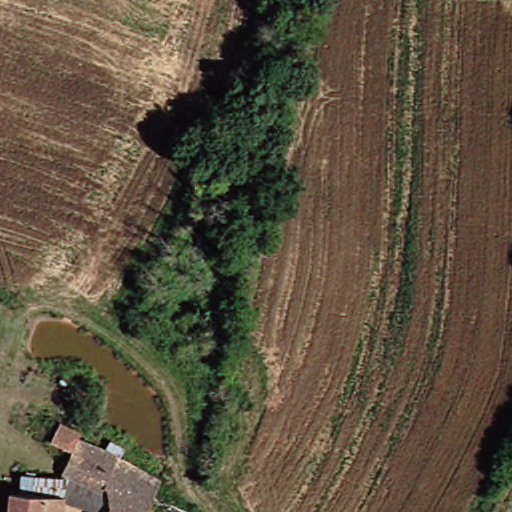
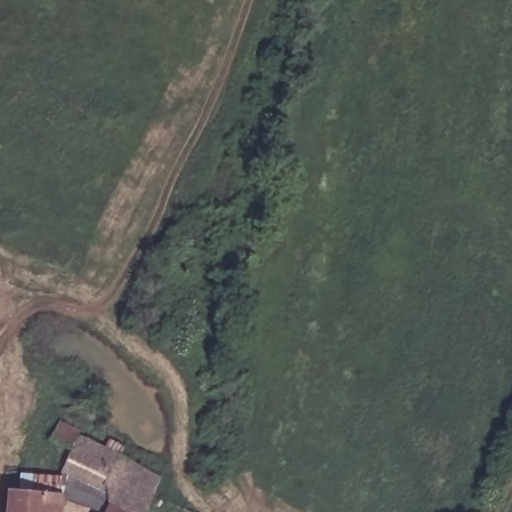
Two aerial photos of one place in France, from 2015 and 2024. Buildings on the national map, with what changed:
unchanged [(73,467),(52,455),(62,434),(82,445),(77,451),(120,465),(109,498),(105,505),(65,487),(73,467)]
unchanged [(157,480),(152,512),(123,512),(125,507),(109,498),(120,465),(157,480)]
unchanged [(65,487),(105,505),(109,498),(125,507),(123,512),(68,512),(65,511),(65,496),(61,493),(65,487)]
unchanged [(65,496),(65,511),(65,512),(19,512),(18,498),(65,496)]

